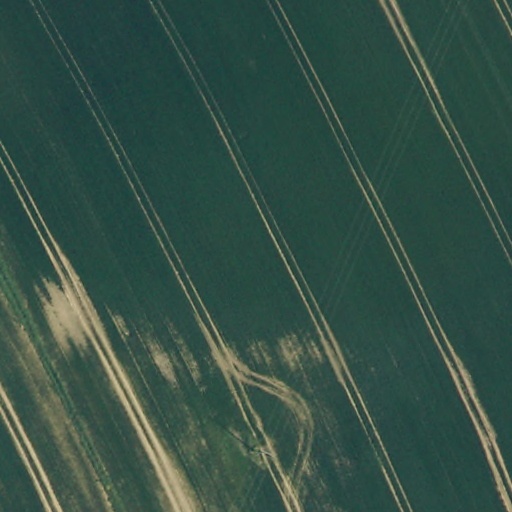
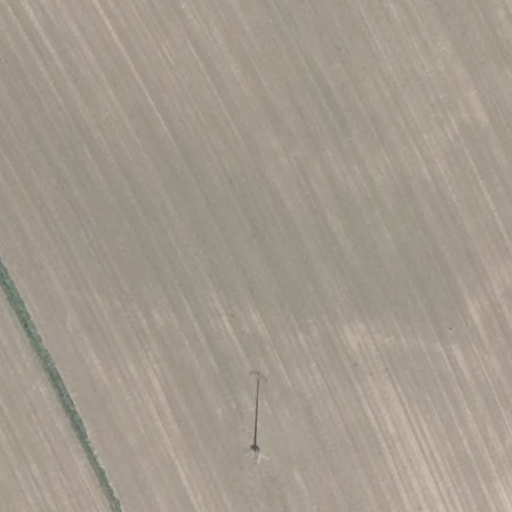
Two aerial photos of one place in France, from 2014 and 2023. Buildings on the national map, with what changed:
[]

